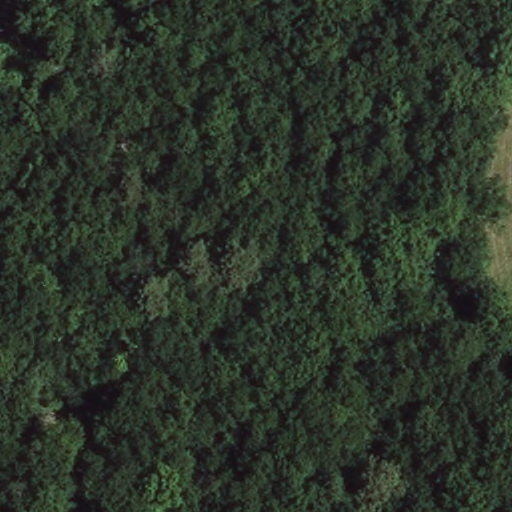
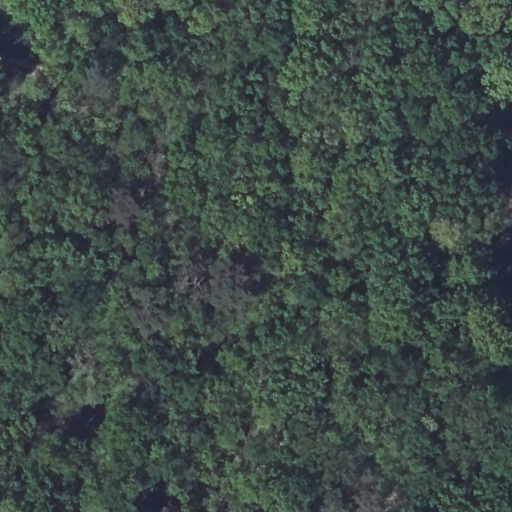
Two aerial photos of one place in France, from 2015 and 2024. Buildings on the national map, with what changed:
[]

